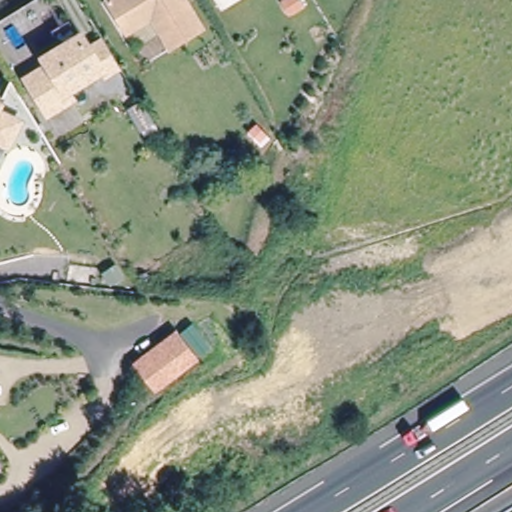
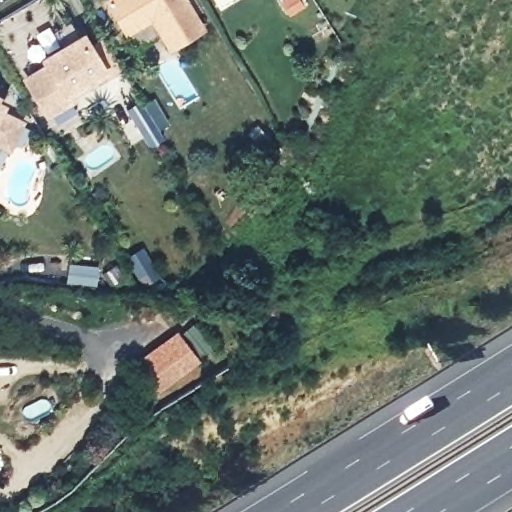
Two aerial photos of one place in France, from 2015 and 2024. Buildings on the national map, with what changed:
unchanged [(122,30),(103,0),(182,0),(197,25),(165,44),(155,27),(130,44),(122,30)]
unchanged [(89,47),(106,74),(93,82),(91,79),(56,100),(61,107),(38,122),(20,95),(24,80),(38,72),(33,65),(50,54),(41,40),(60,28),(69,42),(77,55),(89,47)]
unchanged [(13,126),(3,150),(0,148),(0,120),(13,126)]
unchanged [(156,392),(131,362),(175,330),(179,336),(194,325),(212,347),(156,392)]

